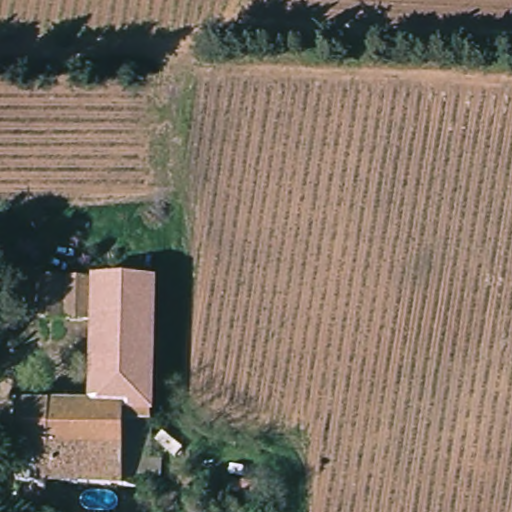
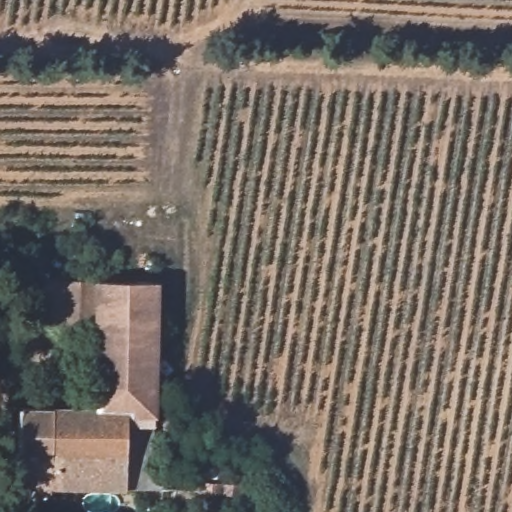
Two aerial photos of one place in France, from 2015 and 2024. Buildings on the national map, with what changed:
unchanged [(159,463),(173,464),(172,495),(74,490),(87,411),(94,325),(37,321),(39,275),(159,279),(159,463)]
unchanged [(0,488),(0,477),(3,407),(87,411),(74,490),(0,488)]
unchanged [(192,488),(255,491),(255,510),(192,505),(192,488)]

